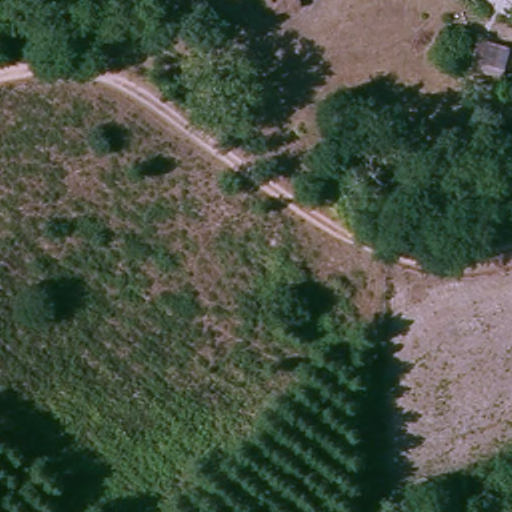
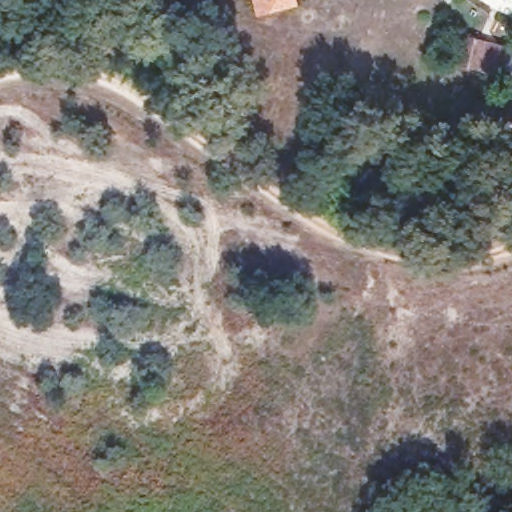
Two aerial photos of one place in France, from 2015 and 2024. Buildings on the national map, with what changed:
new [(253,0),(298,0),(299,6),(270,12),(257,16),(253,0)]
demolished [(267,0),(307,0),(308,4),(272,17),(267,0)]
unchanged [(462,71),(470,45),(497,51),(489,80),(462,71)]

